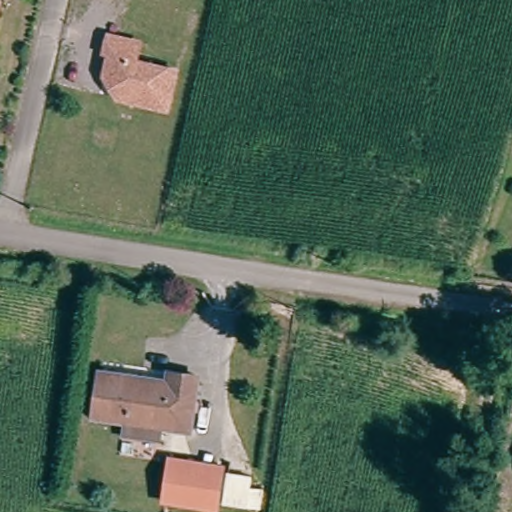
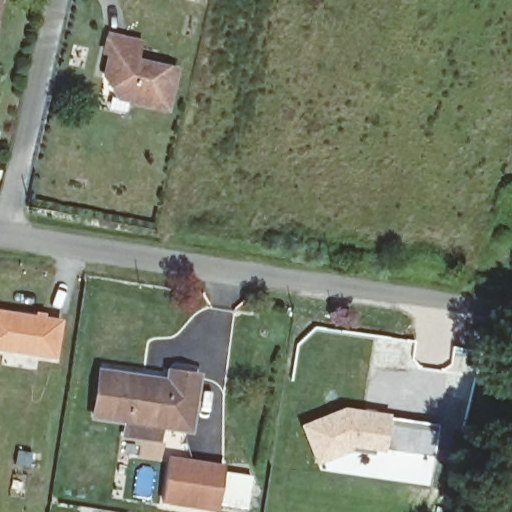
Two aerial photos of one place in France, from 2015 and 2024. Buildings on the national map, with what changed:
unchanged [(0,31),(0,0),(8,0),(0,31)]
unchanged [(109,71),(114,51),(109,49),(112,33),(144,40),(140,59),(180,68),(170,107),(122,95),(104,91),(109,71)]
new [(62,319),(56,360),(0,351),(0,311),(62,319)]
unchanged [(191,429),(96,415),(104,370),(171,379),(172,370),(200,374),(191,429)]
new [(345,407),(390,414),(390,417),(440,424),(435,455),(387,447),(385,453),(352,448),(351,452),(317,464),(302,426),(345,407)]
new [(254,478),(249,510),(220,505),(219,512),(209,512),(162,505),(169,458),(227,465),(225,472),(254,478)]

